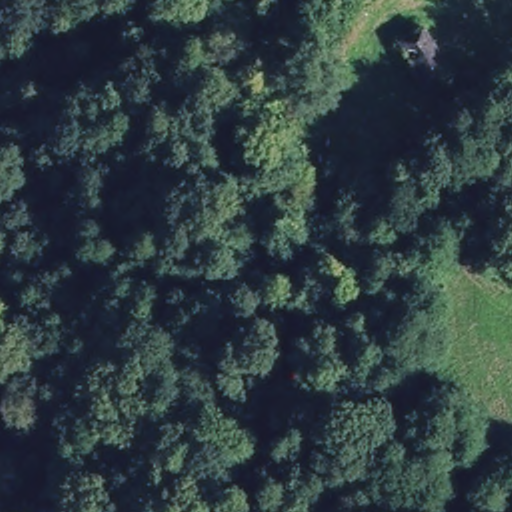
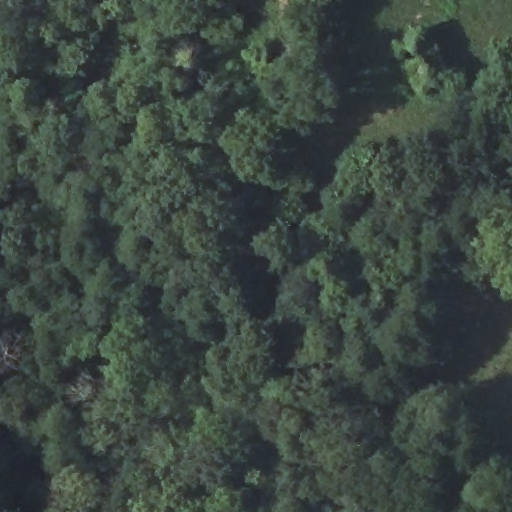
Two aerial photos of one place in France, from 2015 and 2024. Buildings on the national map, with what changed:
unchanged [(389,53),(423,36),(452,80),(415,91),(389,53)]

